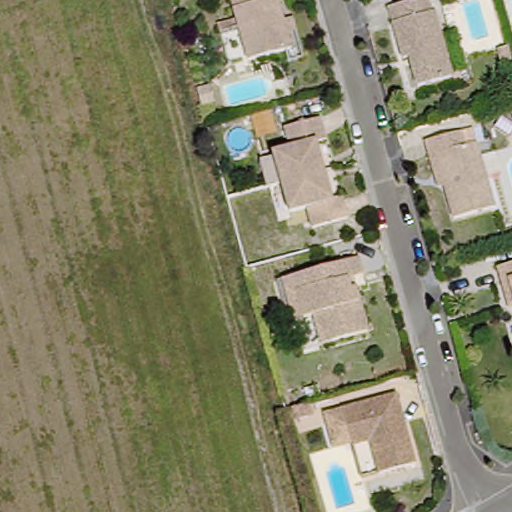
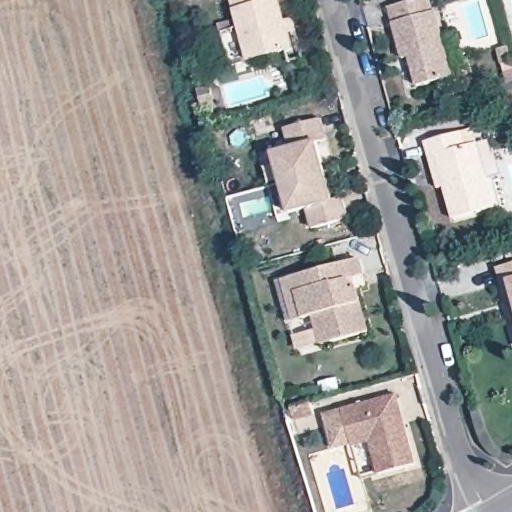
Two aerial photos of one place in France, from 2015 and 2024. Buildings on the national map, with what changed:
unchanged [(283,0),(282,0),(297,52),(252,64),(235,0),(283,0)]
unchanged [(434,13),(452,75),(417,85),(408,55),(402,57),(388,9),(421,0),(427,0),(432,13),(434,13)]
unchanged [(269,153),(286,149),(280,127),(316,118),(322,138),(312,142),(322,172),(278,184),(269,153)]
unchanged [(461,128),(467,143),(479,138),(497,203),(455,215),(447,181),(440,182),(432,153),(427,138),(461,128)]
unchanged [(322,172),(329,201),(339,198),(345,219),(309,229),(303,209),(286,214),(278,184),(322,172)]
unchanged [(312,317),(302,319),(292,322),(280,281),(301,277),(357,261),(361,278),(351,281),(368,334),(330,343),(320,346),(312,317)]
unchanged [(509,311),(500,313),(493,290),(489,271),(512,264),(512,322),(509,311)]
unchanged [(399,395),(417,465),(379,475),(370,443),(333,450),(325,415),(399,395)]

